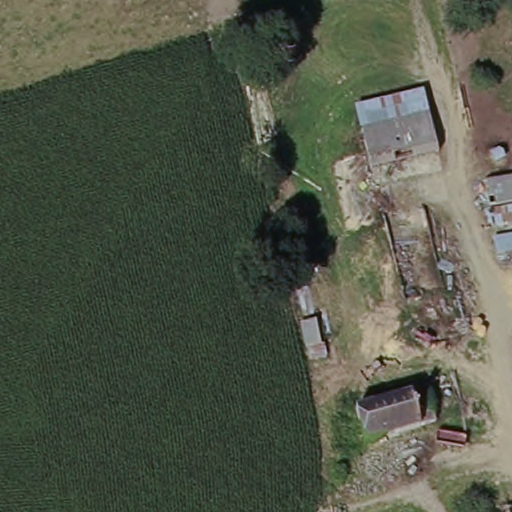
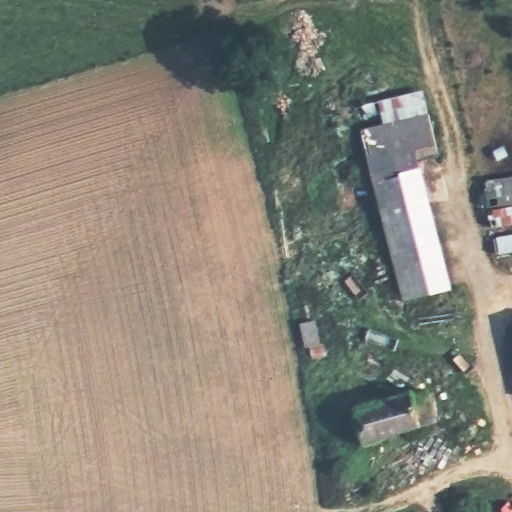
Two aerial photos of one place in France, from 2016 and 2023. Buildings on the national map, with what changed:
unchanged [(358,107),(424,93),(429,115),(363,130),(358,107)]
unchanged [(429,115),(437,156),(371,170),(368,155),(363,130),(429,115)]
new [(452,290),(401,302),(371,170),(420,160),(452,290)]
unchanged [(512,179),(512,206),(492,209),(488,184),(512,179)]
unchanged [(495,230),(493,214),(512,210),(512,227),(495,230)]
unchanged [(494,256),(492,240),(512,236),(512,253),(494,256)]
unchanged [(304,345),(300,327),(314,323),(320,346),(323,360),(308,362),(305,350),(304,345)]
unchanged [(415,395),(417,400),(430,396),(439,425),(367,447),(355,412),(415,395)]

